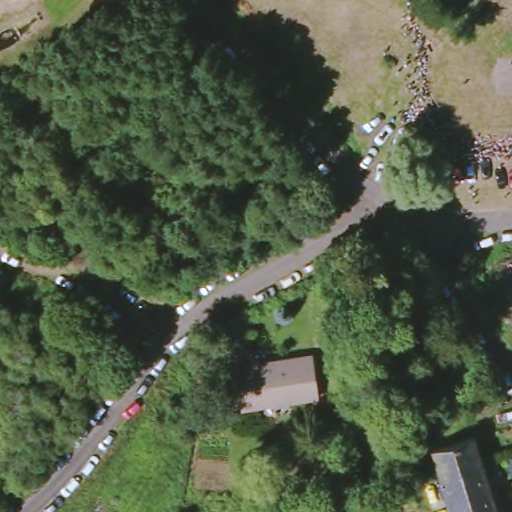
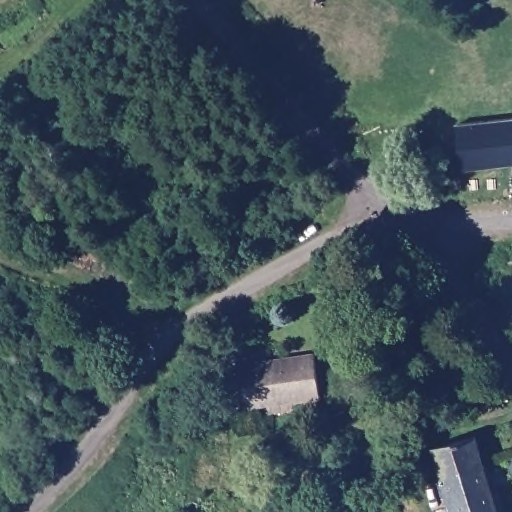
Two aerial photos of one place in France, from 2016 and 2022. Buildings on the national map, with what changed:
new [(512,118),(512,165),(458,171),(455,124),(512,118)]
unchanged [(238,361),(315,354),(318,394),(241,400),(238,361)]
unchanged [(409,429),(405,407),(422,404),(426,426),(409,429)]
unchanged [(476,438),(485,465),(465,471),(443,478),(435,449),(476,438)]
new [(512,456),(512,477),(510,477),(505,458),(512,456)]
unchanged [(443,478),(465,471),(485,465),(499,512),(454,512),(443,478)]

